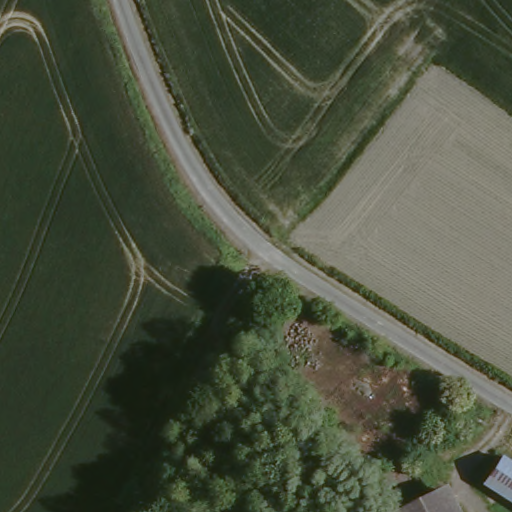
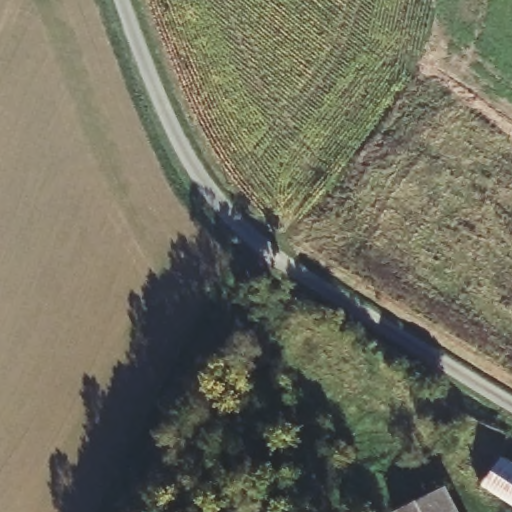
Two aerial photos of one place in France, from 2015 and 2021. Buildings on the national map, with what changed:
unchanged [(490,469),(497,460),(512,471),(512,512),(507,512),(477,492),(490,469)]
unchanged [(432,494),(443,512),(403,512),(432,494)]

